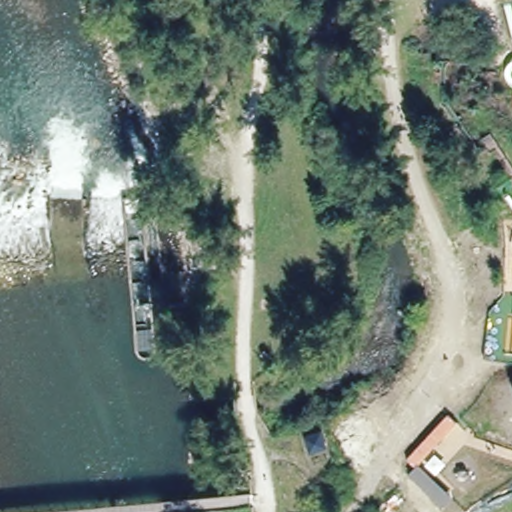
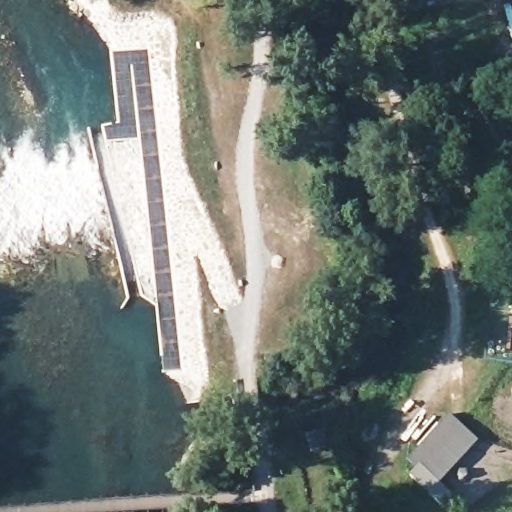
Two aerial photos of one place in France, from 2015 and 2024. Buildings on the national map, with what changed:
new [(437,483),(452,498),(443,507),(407,474),(413,468),(405,461),(447,416),(476,442),(437,483)]
new [(322,433),(327,449),(308,454),(305,437),(322,433)]

